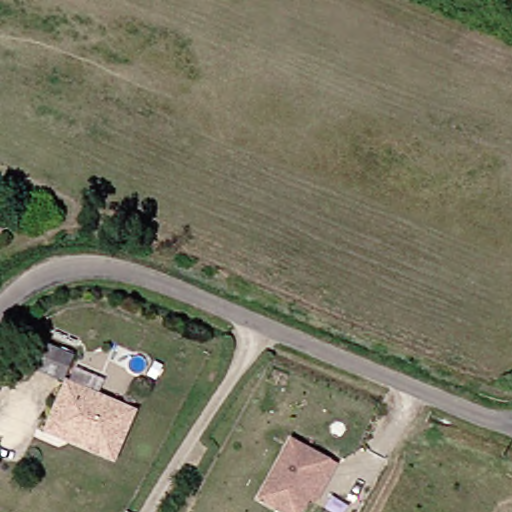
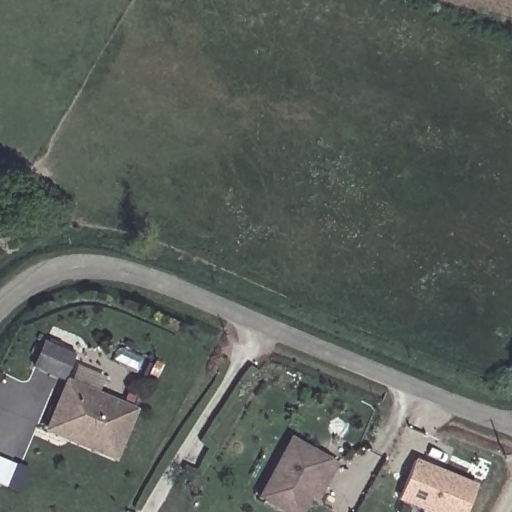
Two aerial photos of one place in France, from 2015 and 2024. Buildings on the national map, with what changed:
unchanged [(71,364),(64,386),(34,374),(44,353),(71,364)]
unchanged [(130,416),(111,462),(47,434),(67,389),(130,416)]
unchanged [(313,493),(302,512),(296,512),(267,495),(263,493),(297,435),(300,437),(341,461),(333,475),(320,497),(313,493)]
new [(417,456),(480,482),(467,512),(442,512),(401,495),(417,456)]

